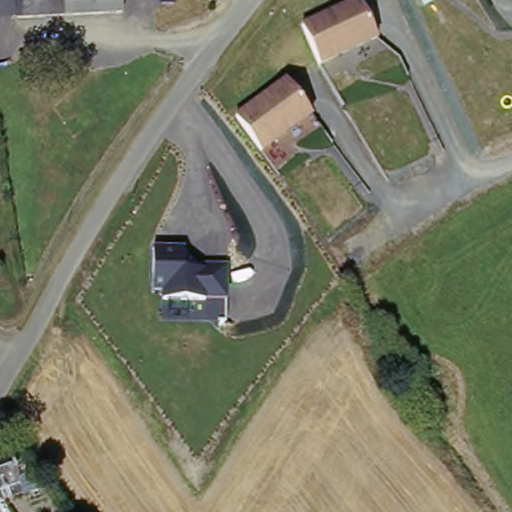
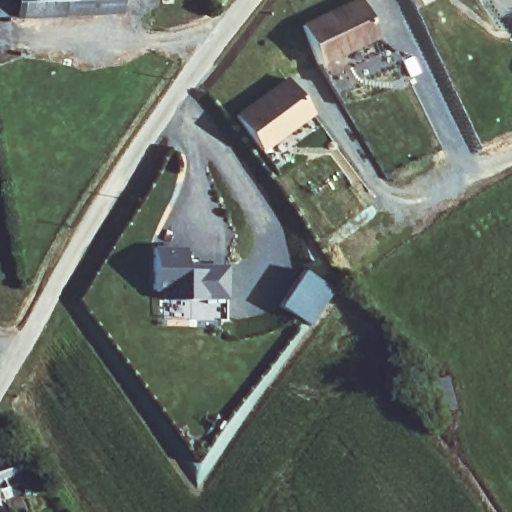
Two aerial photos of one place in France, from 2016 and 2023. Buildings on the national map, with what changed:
unchanged [(17,13),(17,0),(122,0),(122,8),(17,13)]
unchanged [(373,41),(318,63),(301,25),(356,2),(373,41)]
unchanged [(309,119),(257,151),(231,111),(280,81),(309,119)]
unchanged [(186,248),(186,267),(229,266),(229,303),(162,303),(162,293),(154,293),(152,247),(186,248)]
new [(310,268),(338,286),(312,325),(282,308),(310,268)]
unchanged [(1,450),(22,493),(6,498),(4,496),(0,497),(0,450),(1,450)]

